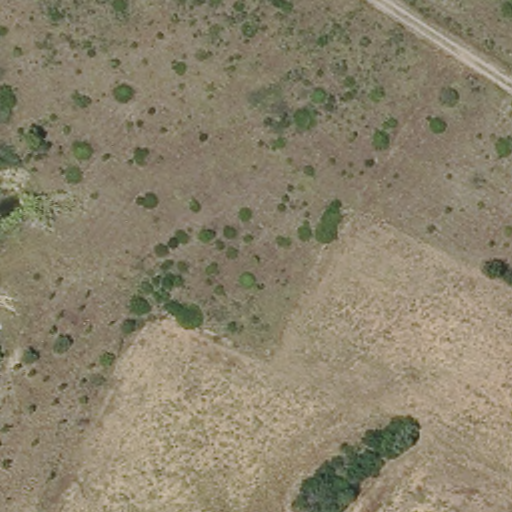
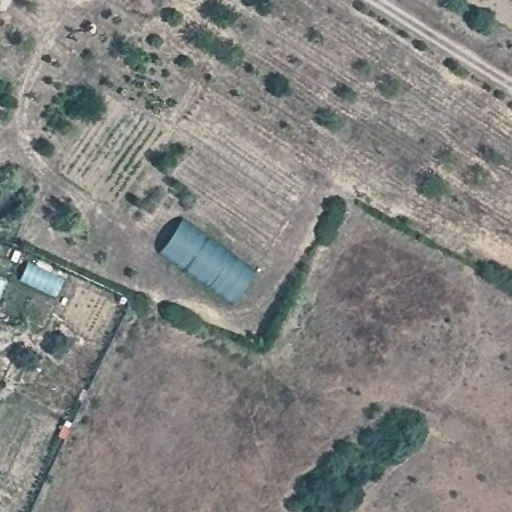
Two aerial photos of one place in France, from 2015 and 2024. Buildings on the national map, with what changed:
new [(253,270),(232,302),(160,251),(183,220),(253,270)]

